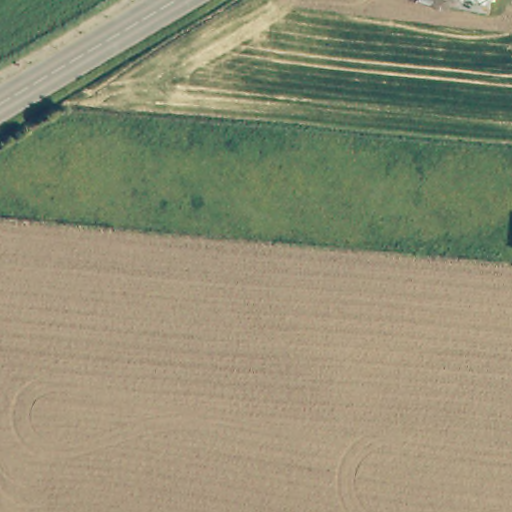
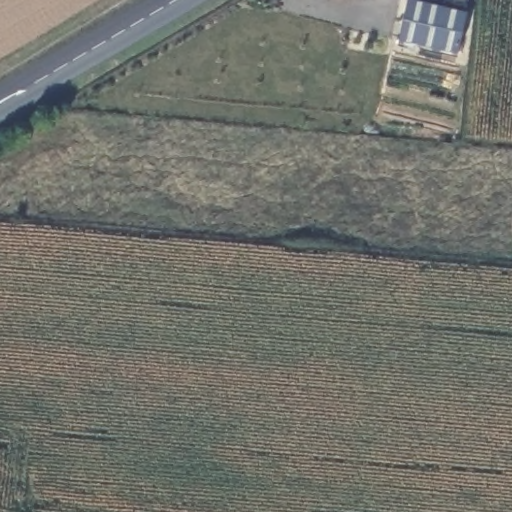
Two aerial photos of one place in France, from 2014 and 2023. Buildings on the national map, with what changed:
new [(408,0),(409,0),(424,2),(424,0),(444,0),(443,7),(467,13),(458,55),(399,41),(408,0)]
demolished [(512,7),(458,0),(512,0),(512,7)]

